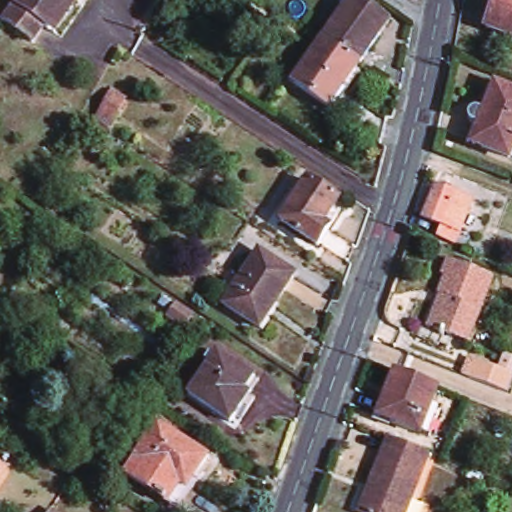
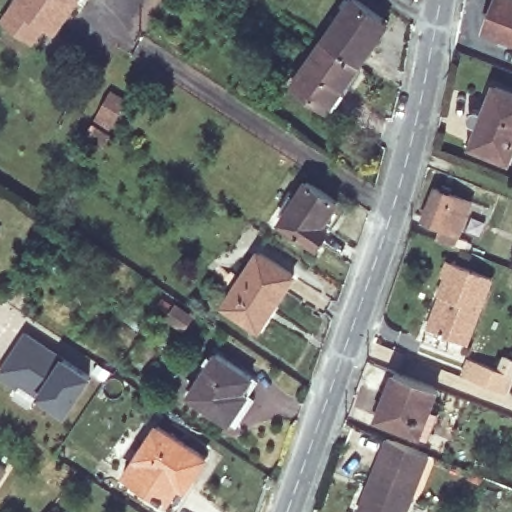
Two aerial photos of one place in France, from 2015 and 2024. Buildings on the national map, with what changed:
unchanged [(59,27),(54,24),(42,40),(13,19),(26,0),(87,0),(65,32),(59,27)]
unchanged [(334,39),(360,0),(367,0),(400,22),(374,63),(334,39)]
unchanged [(508,0),(512,0),(512,33),(499,28),(508,0)]
unchanged [(345,106),(307,81),(334,39),(374,63),(345,106)]
unchanged [(487,126),(487,125),(484,124),(482,122),(481,120),(482,119),(483,115),(483,114),(485,113),(486,113),(488,113),(498,116),(507,89),(512,90),(512,153),(495,148),(482,145),(487,126)]
unchanged [(126,94),(137,100),(127,117),(116,111),(126,94)]
unchanged [(316,180),(352,202),(325,245),(288,221),(316,180)]
unchanged [(437,217),(450,187),(484,200),(473,230),(467,245),(451,239),(457,224),(437,217)]
new [(0,236),(0,232),(2,233),(0,236)]
unchanged [(249,268),(258,275),(274,251),(311,275),(292,303),(296,305),(280,330),(230,298),(249,268)]
unchanged [(452,258),(491,275),(464,338),(432,325),(446,293),(438,290),(452,258)]
new [(67,419),(0,379),(0,373),(27,329),(96,373),(67,419)]
unchanged [(505,390),(466,375),(472,356),(497,365),(502,351),(512,354),(512,371),(505,390)]
unchanged [(225,353),(267,380),(239,421),(199,395),(225,353)]
unchanged [(403,371),(441,385),(435,400),(447,406),(437,433),(387,415),(403,371)]
unchanged [(167,422),(216,453),(185,504),(136,472),(167,422)]
unchanged [(417,512),(375,512),(385,485),(380,483),(399,436),(441,452),(417,512)]
unchanged [(0,491),(0,457),(16,468),(0,491)]
unchanged [(495,480),(482,475),(484,467),(498,472),(495,480)]
unchanged [(70,512),(56,512),(60,505),(70,512)]

